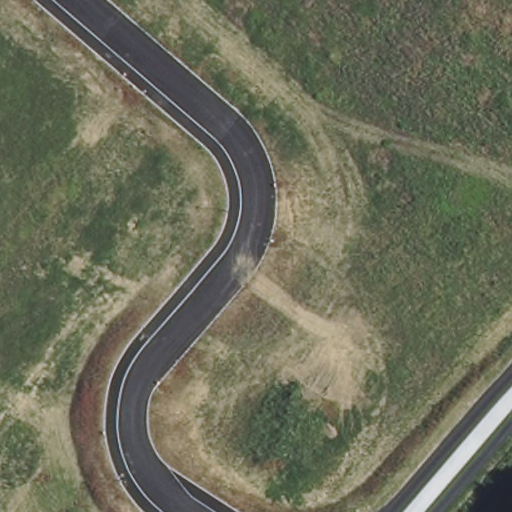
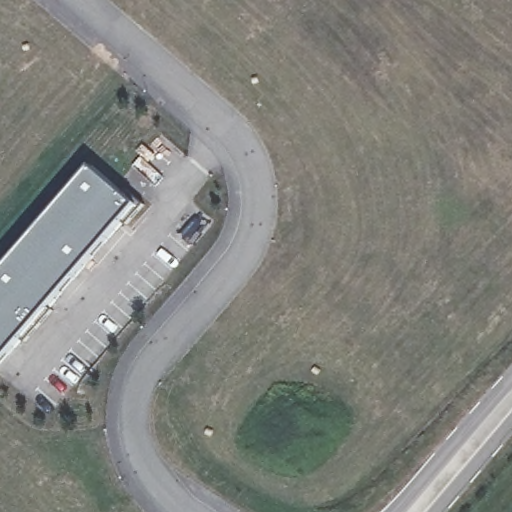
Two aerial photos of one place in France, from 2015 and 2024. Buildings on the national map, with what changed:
new [(122,193),(125,189),(143,204),(125,225),(121,221),(48,307),(52,310),(24,343),(20,340),(0,364),(0,271),(90,165),(122,193)]

